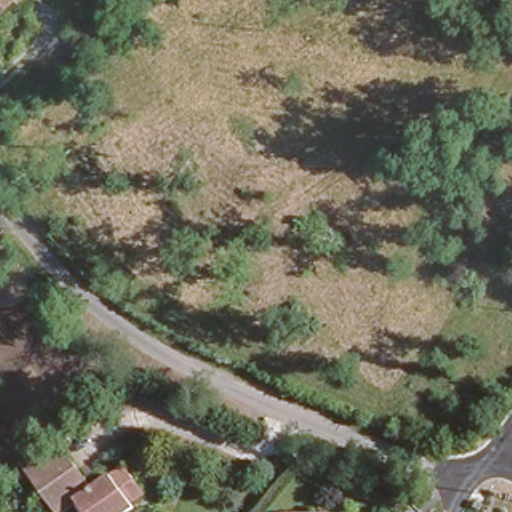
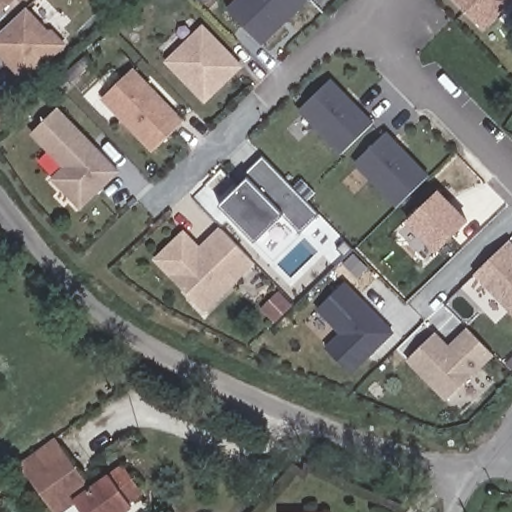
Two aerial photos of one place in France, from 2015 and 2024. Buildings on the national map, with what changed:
unchanged [(2,0),(0,2),(0,0),(2,0)]
new [(263,46),(226,8),(234,0),(311,0),(309,1),(263,46)]
new [(453,0),(512,0),(512,3),(483,31),(453,0)]
new [(52,30),(67,46),(52,59),(47,60),(22,81),(0,56),(0,33),(27,8),(48,30),(52,30)]
new [(205,105),(164,61),(203,24),(244,66),(205,105)]
new [(152,151),(102,99),(133,67),(184,121),(152,151)]
new [(341,155),(298,111),(331,79),(373,123),(341,155)]
new [(81,211),(51,178),(62,166),(31,133),(58,106),(120,171),(81,211)]
new [(396,208),(353,163),(387,130),(429,175),(396,208)]
new [(305,202),(319,215),(300,233),(283,215),(256,242),(221,204),(248,179),(246,173),(262,156),(293,189),(302,179),(315,192),(305,202)]
new [(437,253),(406,221),(439,189),(469,221),(437,253)]
new [(206,313),(154,259),(184,229),(200,246),(220,227),(256,264),(206,313)]
new [(509,240),(512,243),(512,314),(474,274),(509,240)]
new [(317,309),(346,282),(394,332),(351,374),(326,347),(339,332),(317,309)]
new [(447,402),(405,360),(436,331),(448,344),(467,327),(495,355),(447,402)]
unchanged [(71,502),(58,485),(47,493),(28,467),(29,467),(23,458),(22,458),(47,439),(56,432),(63,441),(64,441),(95,483),(127,459),(146,485),(129,497),(134,503),(121,512),(89,512),(78,497),(71,502)]
unchanged [(321,511),(322,512),(289,512),(321,511)]

